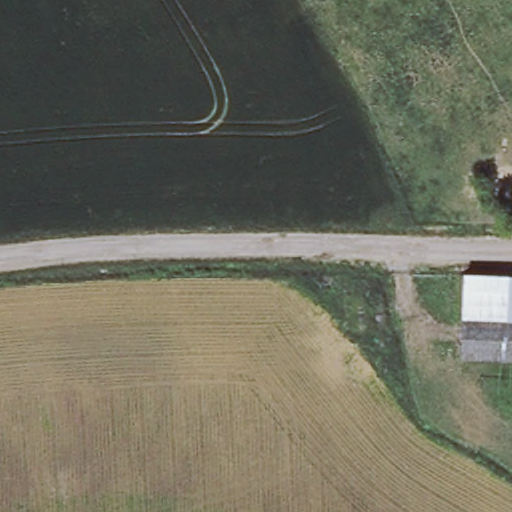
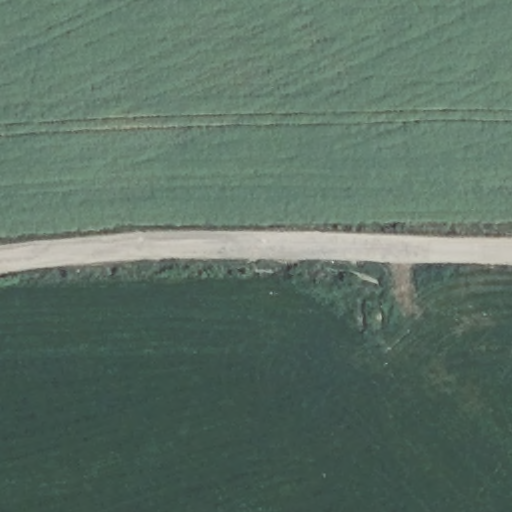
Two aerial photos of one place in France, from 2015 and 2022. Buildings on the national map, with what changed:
demolished [(512,275),(512,306),(463,305),(464,274),(512,275)]
demolished [(512,306),(512,346),(461,345),(463,305),(512,306)]

